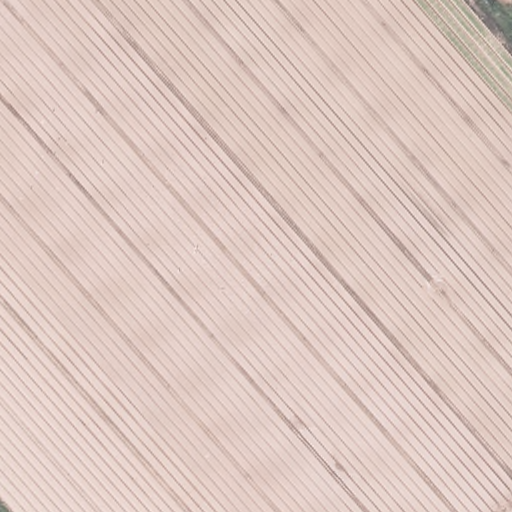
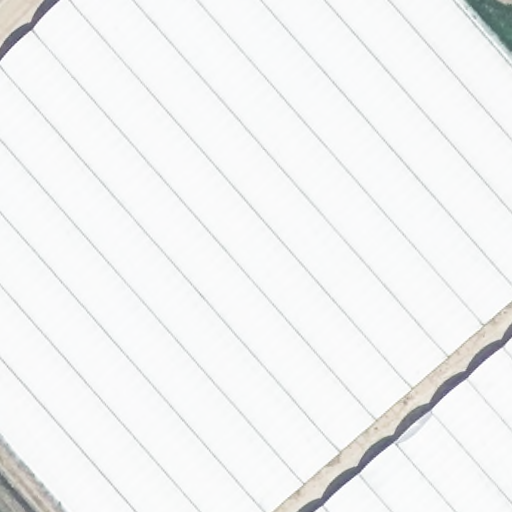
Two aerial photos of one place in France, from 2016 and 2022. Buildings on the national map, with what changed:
new [(0,66),(66,0),(454,0),(512,66),(512,303),(274,512),(73,512),(0,430),(0,66)]
new [(317,512),(512,340),(512,512),(317,512)]

